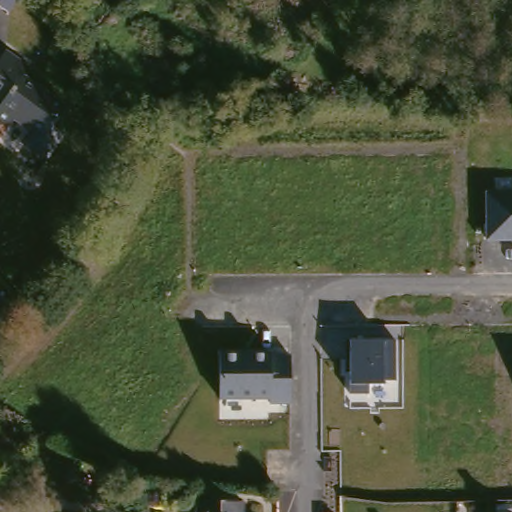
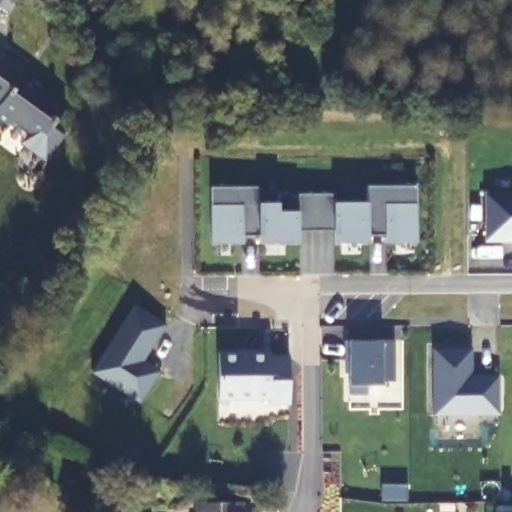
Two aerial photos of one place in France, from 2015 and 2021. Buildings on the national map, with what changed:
unchanged [(0,1),(0,0),(28,0),(19,13),(0,1)]
unchanged [(23,119),(20,124),(5,112),(12,102),(0,93),(0,72),(16,50),(39,68),(33,75),(78,107),(62,126),(73,134),(57,155),(54,159),(30,143),(35,136),(39,130),(23,119)]
new [(379,230),(379,194),(379,181),(426,180),(426,237),(405,237),(396,238),(396,230),(379,230)]
new [(234,240),(213,240),(212,182),(259,182),(259,195),(259,232),(244,232),(244,240),(234,240)]
new [(303,225),(303,239),(259,239),(259,232),(259,195),(279,195),(279,186),(319,185),(343,185),(343,194),(379,194),(379,230),(379,238),(342,238),(342,225),(319,225),(303,225)]
unchanged [(485,192),(512,192),(512,240),(486,239),(485,192)]
new [(135,307),(167,326),(145,362),(162,372),(142,404),(94,375),(135,307)]
unchanged [(383,340),(395,340),(395,381),(382,380),(382,384),(368,384),(368,394),(349,394),(349,384),(350,340),(383,340)]
new [(472,347),(473,373),(500,373),(501,414),(434,416),(433,349),(472,347)]
unchanged [(270,356),(291,354),(290,404),(269,404),(270,399),(220,399),(219,351),(270,351),(270,356)]
unchanged [(243,499),(242,512),(195,512),(196,496),(243,499)]

